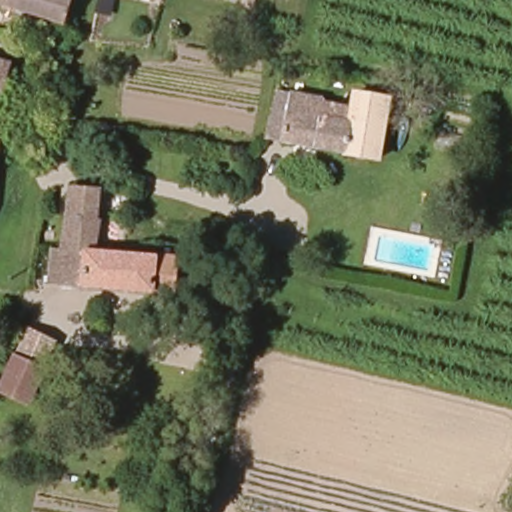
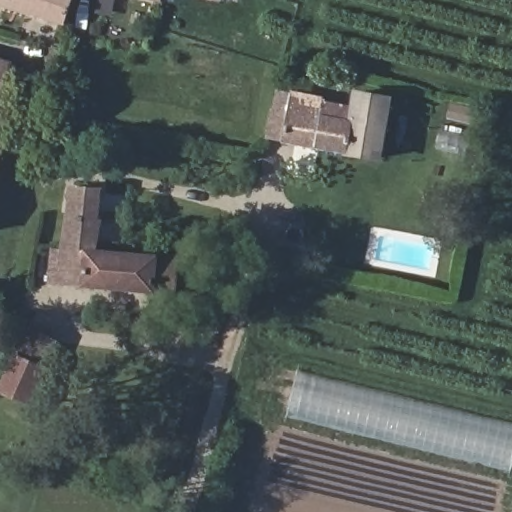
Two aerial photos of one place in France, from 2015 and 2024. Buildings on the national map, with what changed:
unchanged [(0,4),(0,0),(72,0),(64,25),(0,4)]
unchanged [(144,0),(166,0),(164,5),(144,0)]
unchanged [(60,70),(49,66),(52,45),(66,47),(60,70)]
unchanged [(5,100),(0,99),(0,59),(14,63),(5,100)]
unchanged [(370,160),(275,142),(286,92),(315,97),(315,101),(341,105),(345,90),(383,99),(370,160)]
unchanged [(51,231),(71,232),(74,188),(137,192),(132,230),(131,238),(106,237),(91,237),(90,249),(60,247),(50,246),(51,231)]
unchanged [(90,249),(164,253),(161,291),(55,283),(60,247),(90,249)]
unchanged [(52,343),(25,405),(0,393),(0,386),(25,333),(52,343)]
new [(510,472),(285,418),(296,371),(512,423),(512,463),(510,472)]

